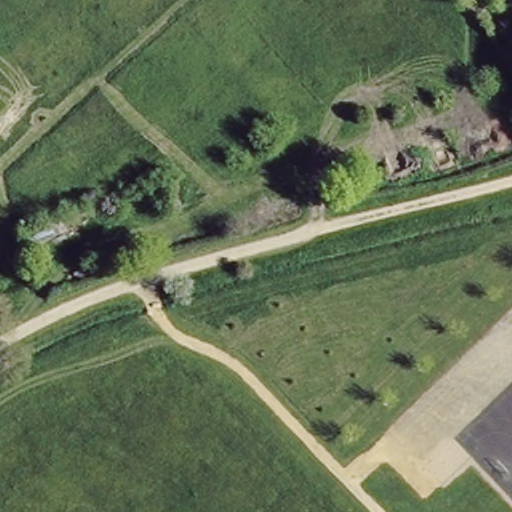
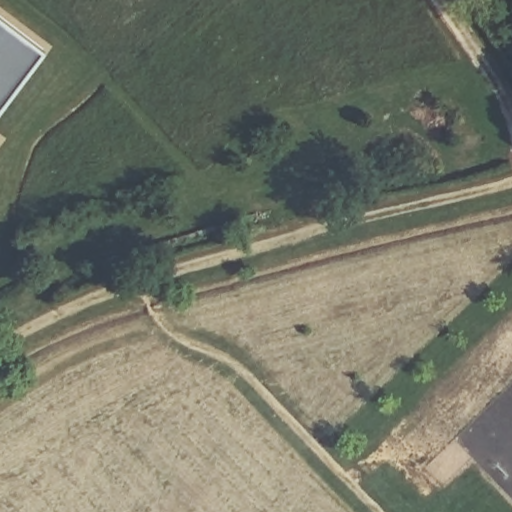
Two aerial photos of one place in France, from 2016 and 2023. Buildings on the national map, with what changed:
new [(0,104),(0,15),(42,47),(0,104)]
unchanged [(0,249),(12,239),(20,250),(8,260),(0,250),(0,249)]

